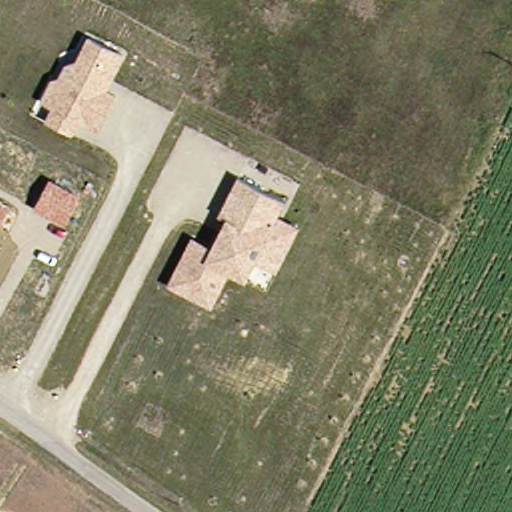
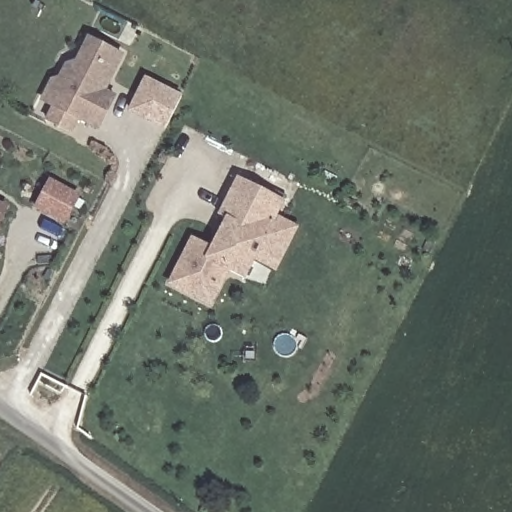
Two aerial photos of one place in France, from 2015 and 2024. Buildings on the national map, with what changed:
unchanged [(76,50),(83,37),(121,55),(102,91),(114,97),(97,129),(76,118),(70,131),(33,112),(63,55),(76,50)]
new [(128,112),(146,77),(183,95),(165,131),(128,112)]
unchanged [(83,191),(67,224),(34,206),(49,176),(83,191)]
unchanged [(223,230),(213,224),(236,180),(284,201),(274,220),(294,229),(262,292),(242,281),(245,277),(227,268),(209,303),(170,283),(192,240),(212,250),(223,230)]
unchanged [(9,205),(0,223),(0,200),(9,205)]

